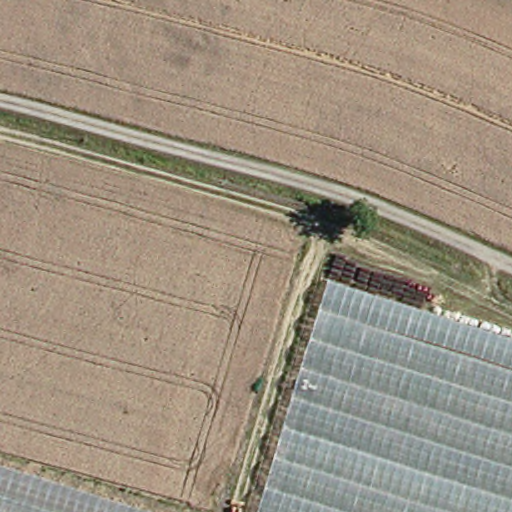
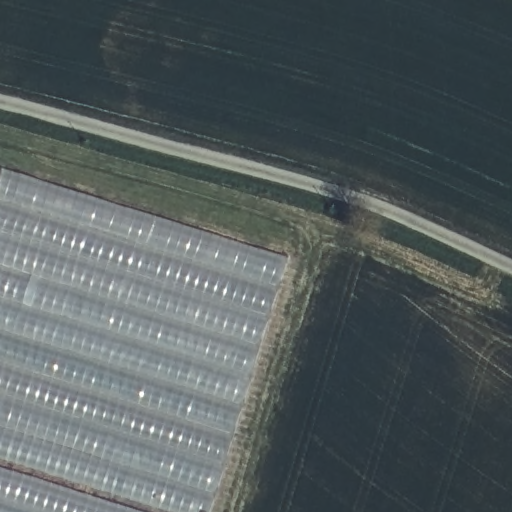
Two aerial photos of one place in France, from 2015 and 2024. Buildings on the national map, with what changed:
new [(0,175),(1,171),(287,257),(209,512),(180,512),(0,454),(0,175)]
demolished [(512,342),(512,512),(258,512),(327,285),(512,342)]
new [(0,512),(0,467),(146,512),(0,512)]

